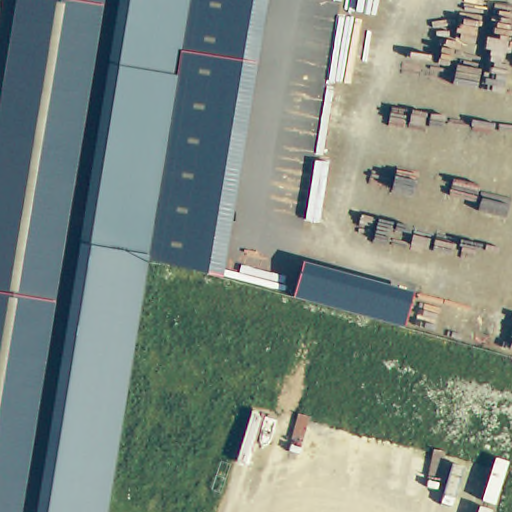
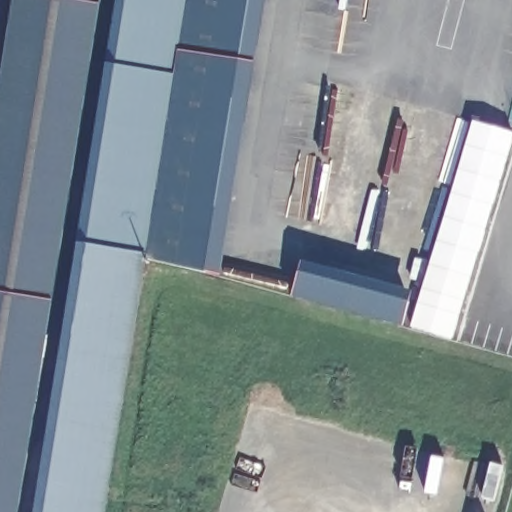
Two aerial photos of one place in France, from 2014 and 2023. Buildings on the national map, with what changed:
unchanged [(25,0),(78,0),(0,478),(0,154),(25,0)]
unchanged [(175,0),(137,249),(80,239),(118,0),(175,0)]
unchanged [(175,0),(267,0),(222,276),(136,259),(137,249),(175,0)]
new [(512,137),(452,338),(412,326),(473,120),(512,132),(512,137)]
unchanged [(97,512),(36,512),(80,239),(137,249),(97,512)]
unchanged [(412,292),(404,327),(293,297),(302,262),(412,292)]

